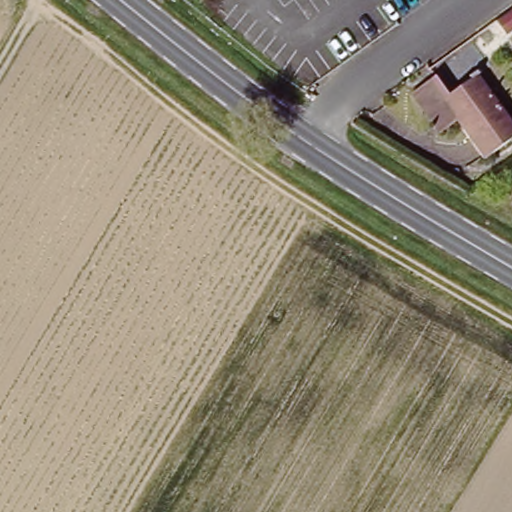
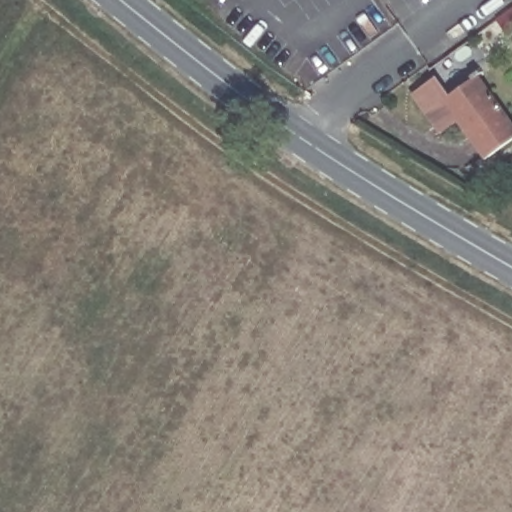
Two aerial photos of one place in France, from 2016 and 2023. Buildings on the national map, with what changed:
unchanged [(430,124),(408,94),(429,78),(422,70),(446,53),(466,80),(472,75),(512,130),(512,133),(480,156),(450,120),(435,131),(430,124)]

